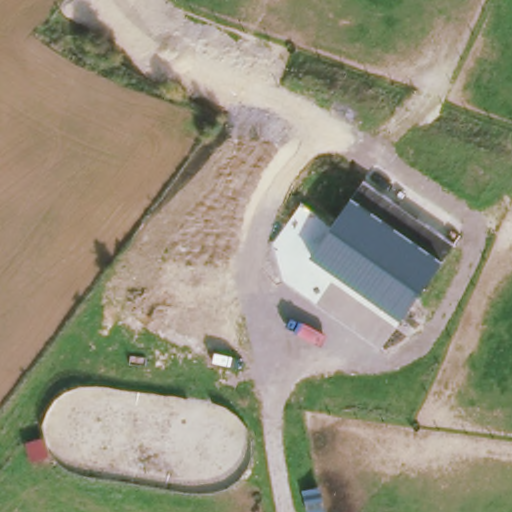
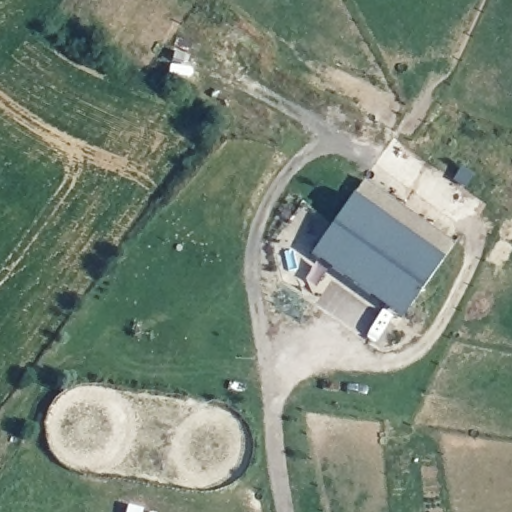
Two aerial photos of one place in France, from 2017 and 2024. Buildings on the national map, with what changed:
unchanged [(454,244),(442,260),(401,319),(311,255),(353,198),(364,182),(454,244)]

